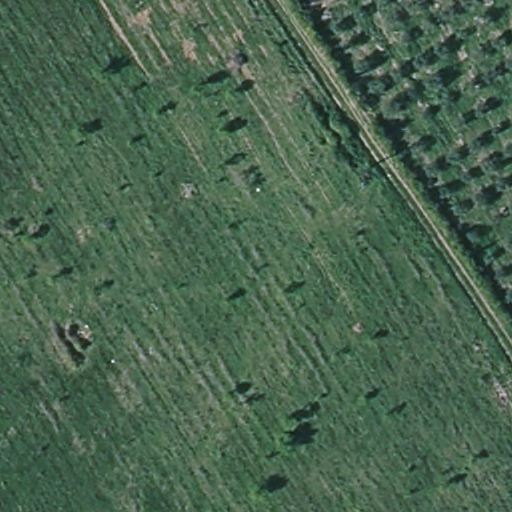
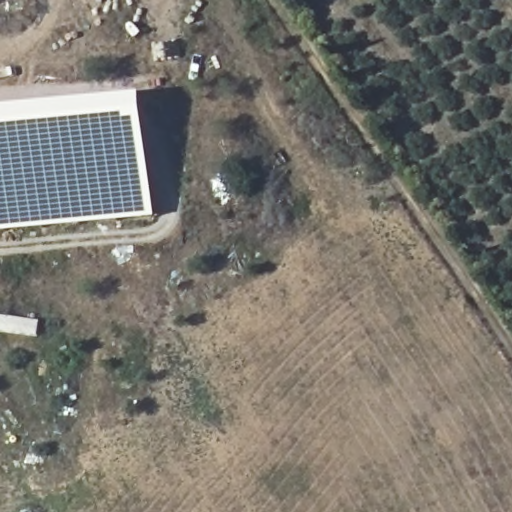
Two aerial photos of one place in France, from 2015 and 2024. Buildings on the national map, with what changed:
new [(0,232),(0,110),(147,96),(158,217),(0,232)]
new [(0,332),(0,316),(40,321),(38,337),(0,332)]

